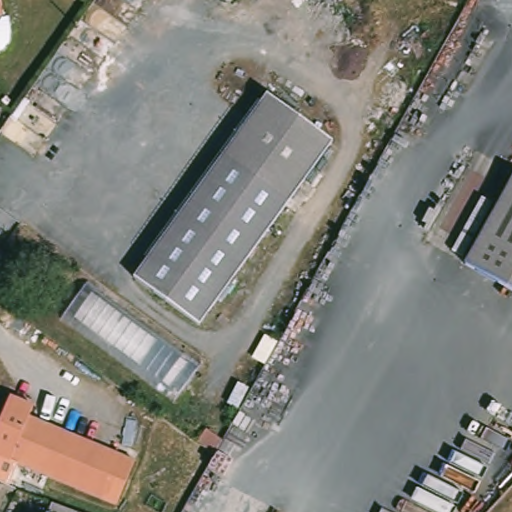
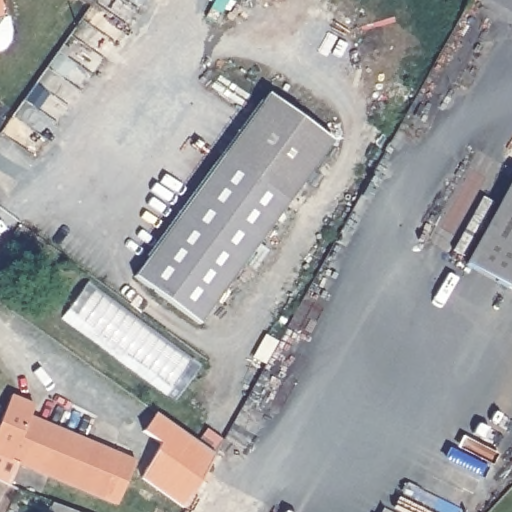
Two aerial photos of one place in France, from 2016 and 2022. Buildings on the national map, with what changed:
unchanged [(2,14),(0,14),(0,5),(2,14)]
unchanged [(2,14),(7,36),(4,47),(0,48),(0,14),(2,14)]
unchanged [(272,90),(336,138),(202,320),(137,272),(272,90)]
unchanged [(512,188),(512,285),(471,262),(493,221),(512,188)]
unchanged [(186,355),(159,386),(62,315),(91,283),(186,355)]
unchanged [(112,501),(96,494),(0,451),(0,415),(10,392),(34,402),(30,414),(115,453),(131,460),(112,501)]
new [(142,477),(161,442),(143,431),(156,413),(212,454),(183,505),(142,477)]
new [(0,480),(0,451),(18,459),(9,484),(0,480)]
unchanged [(55,506),(70,512),(52,512),(55,506)]

